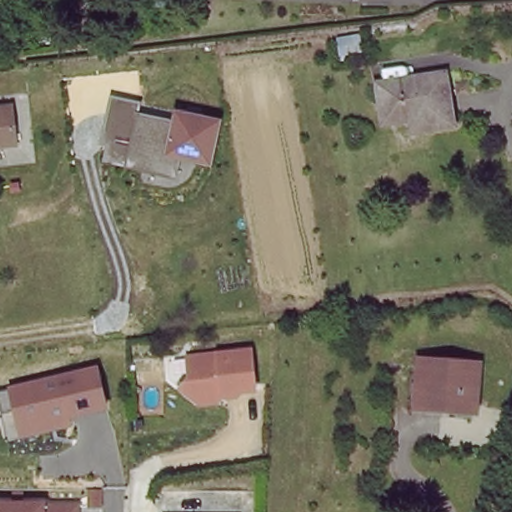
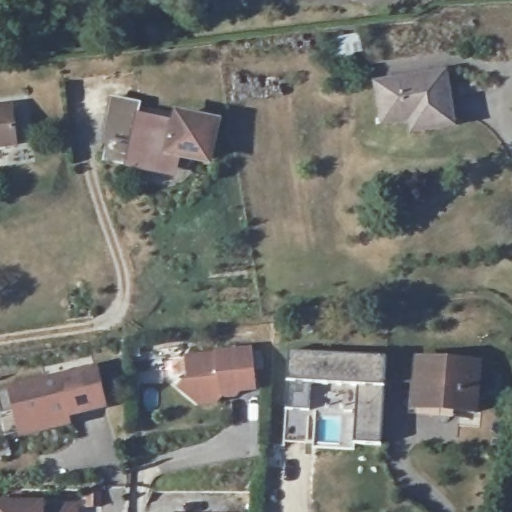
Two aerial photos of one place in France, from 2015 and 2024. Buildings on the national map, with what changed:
unchanged [(354,52),(338,54),(336,41),(351,39),(354,52)]
unchanged [(408,120),(383,124),(375,83),(444,73),(453,126),(427,130),(411,133),(408,120)]
unchanged [(209,169),(183,166),(177,183),(103,166),(107,145),(98,140),(110,100),(139,105),(136,115),(173,120),(173,111),(221,120),(209,169)]
unchanged [(15,146),(0,148),(0,109),(11,108),(15,146)]
unchanged [(218,398),(203,412),(176,388),(186,374),(183,357),(216,351),(253,347),(261,392),(218,398)]
new [(285,442),(286,409),(288,380),(289,352),(387,358),(385,385),(388,391),(383,391),(382,445),(354,444),(356,384),(309,382),(310,410),(307,409),(306,442),(285,442)]
unchanged [(419,354),(477,361),(471,412),(414,406),(419,354)]
unchanged [(71,428),(20,439),(16,409),(0,413),(0,391),(11,388),(9,384),(97,364),(109,411),(73,418),(71,428)]
unchanged [(77,512),(0,512),(0,503),(77,503),(77,512)]

